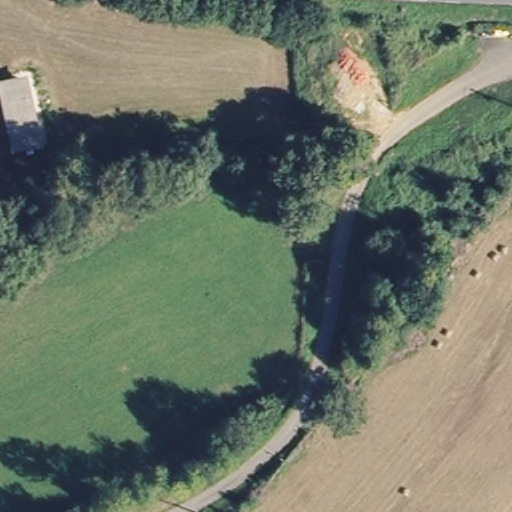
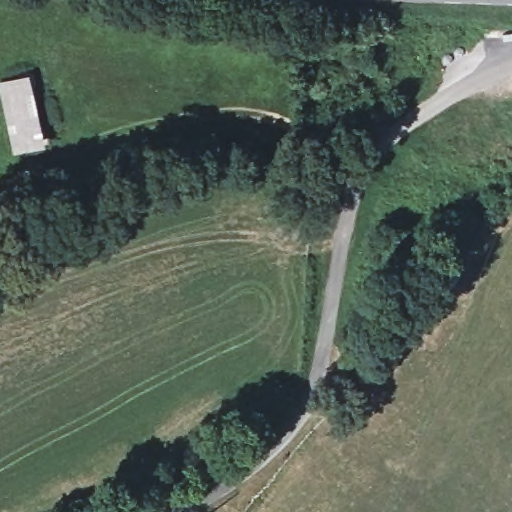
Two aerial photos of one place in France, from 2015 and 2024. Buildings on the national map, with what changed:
unchanged [(36,150),(9,150),(5,77),(31,76),(36,150)]

